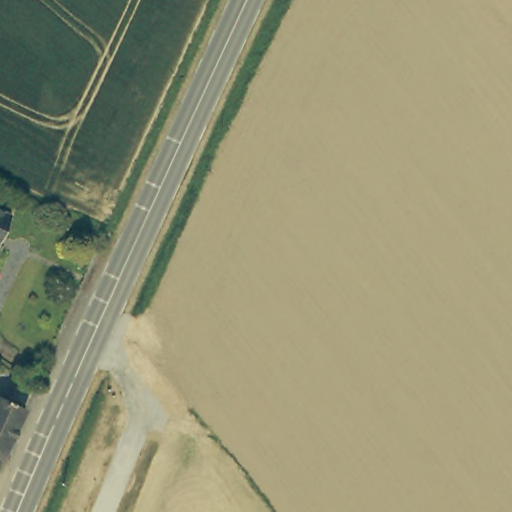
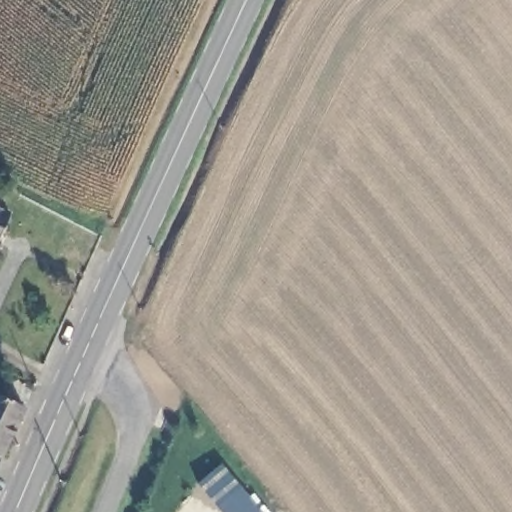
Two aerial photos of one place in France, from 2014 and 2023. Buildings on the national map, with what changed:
unchanged [(0,235),(0,208),(10,213),(0,235)]
unchanged [(0,461),(0,394),(28,406),(0,461)]
new [(219,466),(257,512),(217,512),(196,486),(219,466)]

